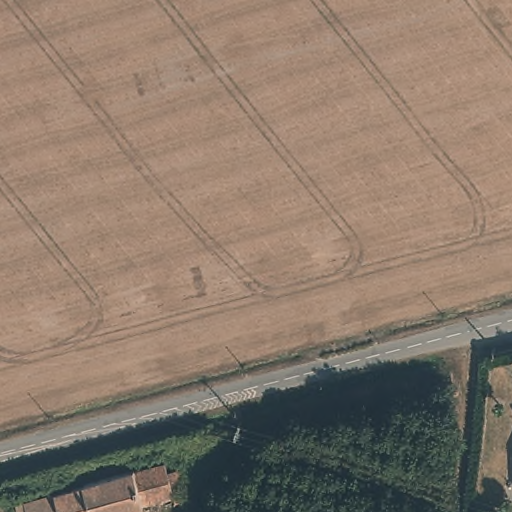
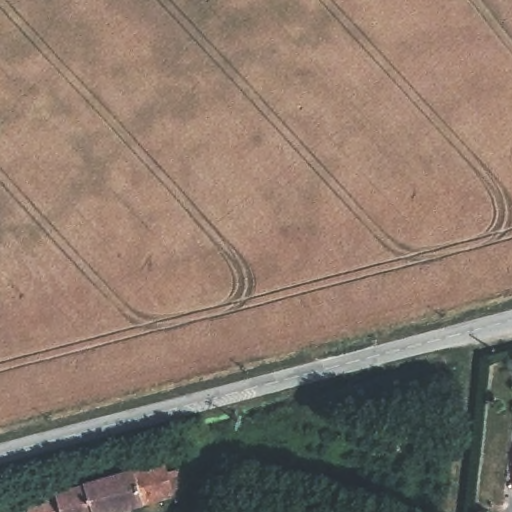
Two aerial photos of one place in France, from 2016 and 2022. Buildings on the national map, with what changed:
unchanged [(26,512),(18,512),(16,505),(85,486),(84,485),(135,470),(135,472),(165,463),(168,472),(181,467),(184,500),(175,502),(174,497),(117,512),(28,512),(27,512),(26,512)]

